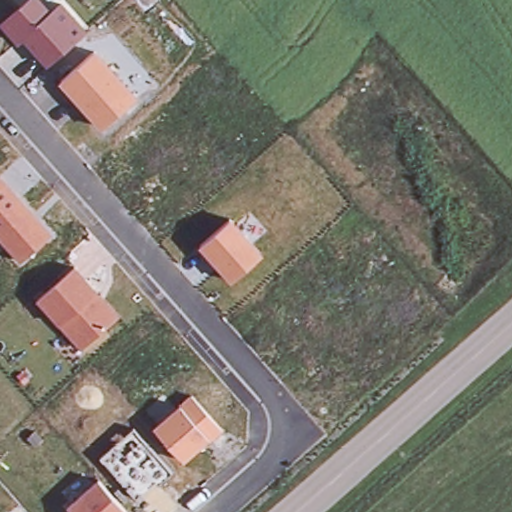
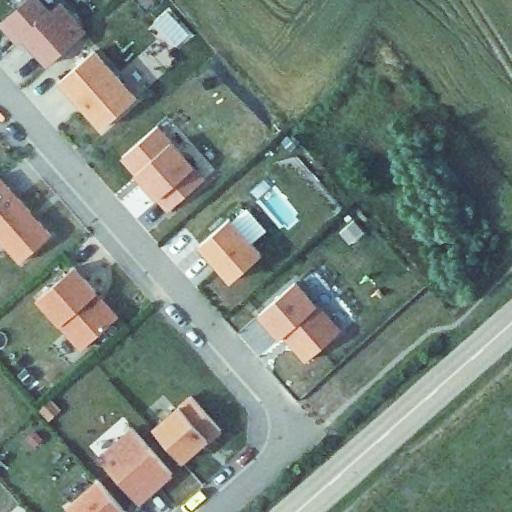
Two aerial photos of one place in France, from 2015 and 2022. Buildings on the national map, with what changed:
unchanged [(20,46),(0,26),(0,23),(25,0),(47,0),(55,9),(65,0),(66,0),(92,30),(48,66),(24,40),(20,46)]
unchanged [(100,129),(58,80),(95,49),(138,96),(100,129)]
new [(156,129),(203,181),(168,212),(121,160),(156,129)]
unchanged [(55,234),(22,264),(0,240),(0,176),(2,174),(55,234)]
unchanged [(230,282),(197,245),(231,216),(263,254),(230,282)]
unchanged [(78,265),(121,314),(83,351),(36,301),(78,265)]
new [(295,283),(315,307),(316,305),(340,332),(305,362),(291,346),(296,342),(288,332),(280,340),(258,316),(295,283)]
unchanged [(184,461),(153,427),(190,392),(222,430),(184,461)]
unchanged [(135,499),(98,457),(132,429),(168,470),(135,499)]
unchanged [(66,508),(98,478),(129,512),(70,512),(66,508)]

